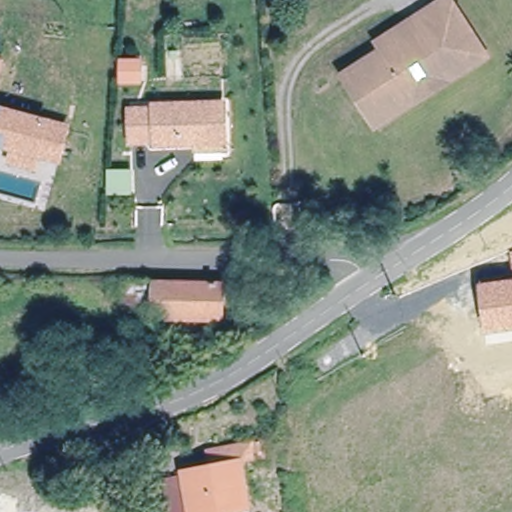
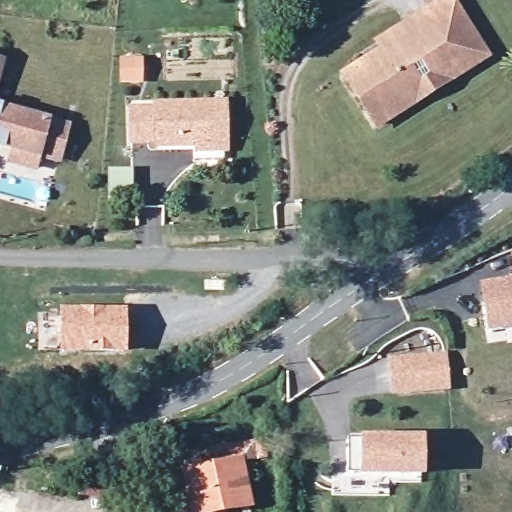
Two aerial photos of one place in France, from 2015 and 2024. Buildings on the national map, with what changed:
unchanged [(377,126),(344,74),(382,50),(377,43),(412,20),(444,0),(450,0),(487,56),(451,79),(415,103),(377,126)]
unchanged [(142,82),(121,82),(121,61),(142,61),(142,82)]
unchanged [(224,143),(156,145),(156,142),(131,142),(130,109),(154,109),(154,105),(222,103),(224,143)]
unchanged [(56,160),(0,143),(0,109),(65,128),(56,160)]
unchanged [(131,190),(110,191),(110,170),(130,170),(131,190)]
unchanged [(512,249),(512,274),(509,249),(512,249)]
unchanged [(121,278),(167,279),(167,281),(237,283),(235,316),(164,317),(164,305),(136,306),(136,292),(121,292),(121,278)]
unchanged [(512,329),(483,332),(477,282),(512,279),(512,329)]
new [(57,307),(127,308),(127,354),(57,354),(57,307)]
new [(447,352),(450,390),(391,395),(388,357),(447,352)]
new [(425,435),(425,477),(359,476),(359,472),(348,472),(348,439),(360,439),(359,434),(425,435)]
unchanged [(213,447),(255,435),(259,450),(245,454),(260,501),(222,512),(202,512),(190,471),(218,462),(213,447)]
unchanged [(178,512),(168,478),(190,471),(202,512),(178,512)]

